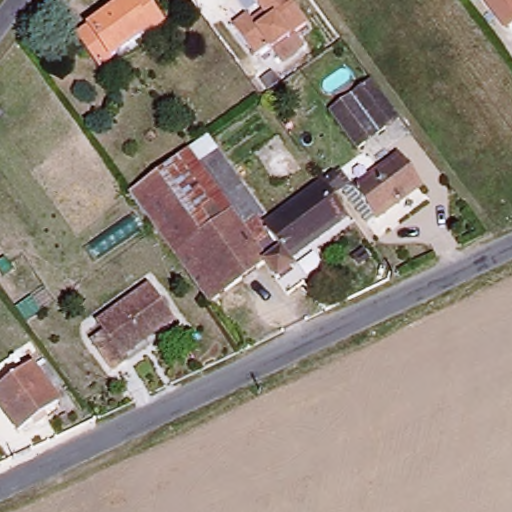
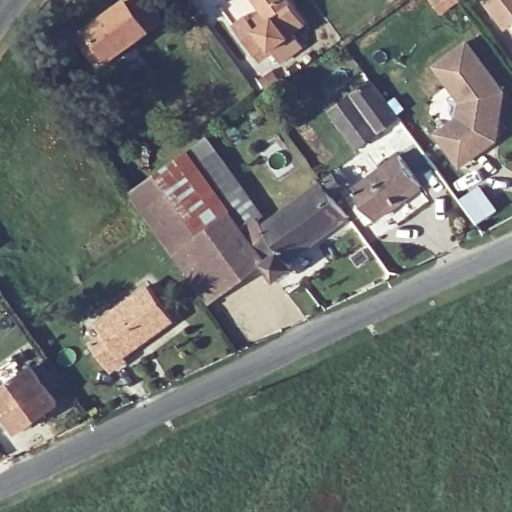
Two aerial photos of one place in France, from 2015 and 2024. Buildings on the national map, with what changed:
unchanged [(139,0),(154,22),(101,62),(79,32),(123,0),(139,0)]
unchanged [(271,47),(266,50),(262,49),(250,59),(227,27),(242,17),(250,30),(264,20),(250,0),(287,0),(303,22),(293,31),(300,42),(279,57),(271,47)]
unchanged [(483,9),(495,0),(512,0),(512,30),(503,37),(483,9)]
new [(505,91),(498,141),(461,168),(435,133),(458,115),(459,101),(432,66),(467,39),(505,91)]
unchanged [(353,151),(323,114),(365,79),(397,119),(353,151)]
unchanged [(250,191),(259,184),(267,193),(257,203),(263,211),(257,217),(262,223),(322,179),(331,172),(340,185),(332,192),(343,207),(282,252),(294,267),(282,275),(193,152),(212,137),(250,191)]
unchanged [(193,152),(282,275),(272,282),(259,263),(205,302),(151,230),(130,197),(193,152)]
unchanged [(398,157),(418,185),(373,218),(353,190),(398,157)]
unchanged [(102,330),(94,318),(142,282),(169,320),(122,352),(123,360),(107,371),(86,342),(102,330)]
unchanged [(0,412),(0,395),(29,375),(41,367),(57,391),(47,400),(54,410),(18,436),(0,412)]

